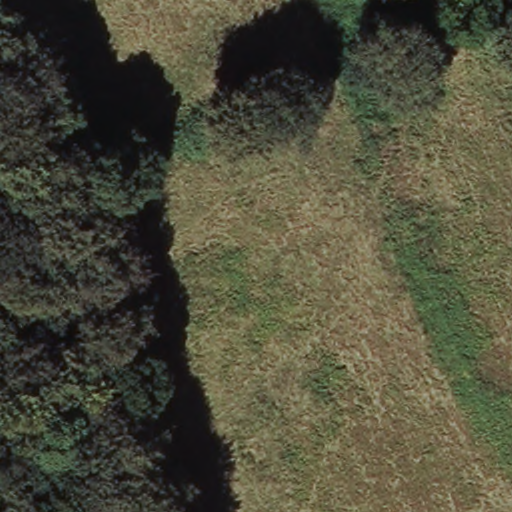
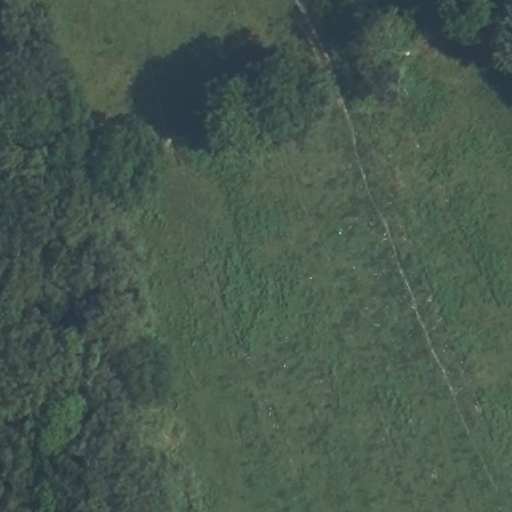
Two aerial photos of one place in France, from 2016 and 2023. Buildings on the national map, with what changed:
[]

